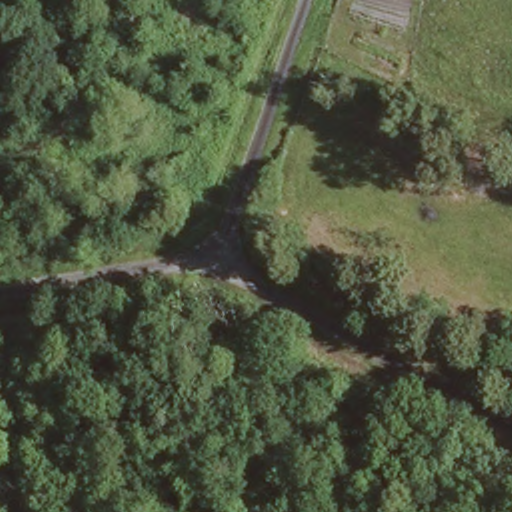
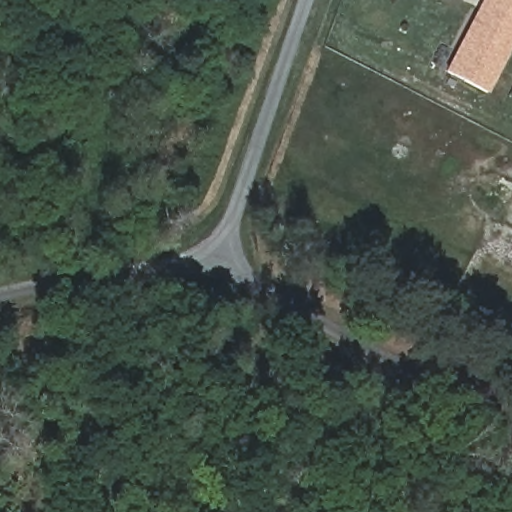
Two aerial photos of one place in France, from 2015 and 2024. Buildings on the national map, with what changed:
new [(489,92),(443,69),(481,0),(512,0),(512,45),(489,92)]

